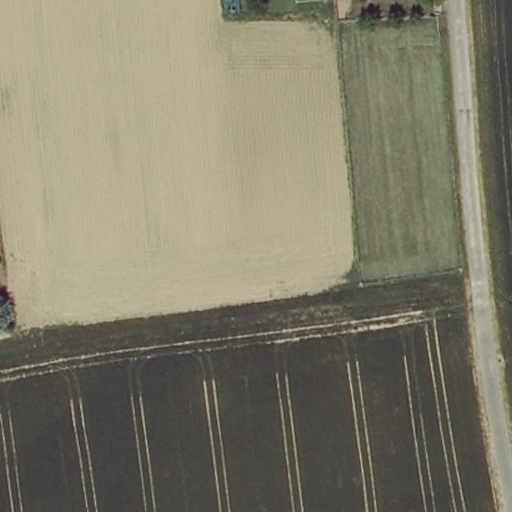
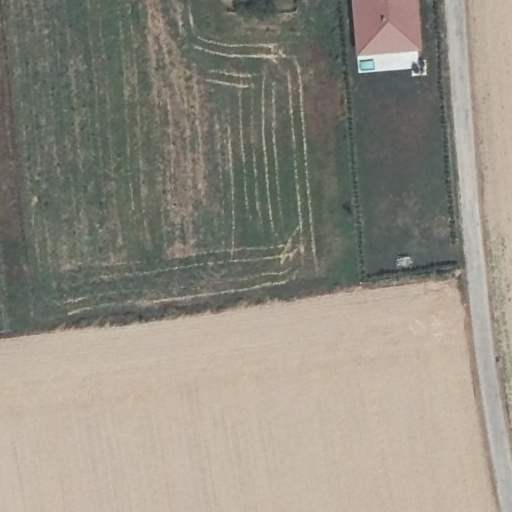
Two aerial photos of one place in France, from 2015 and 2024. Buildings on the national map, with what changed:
new [(418,50),(354,53),(349,0),(414,0),(418,50)]

